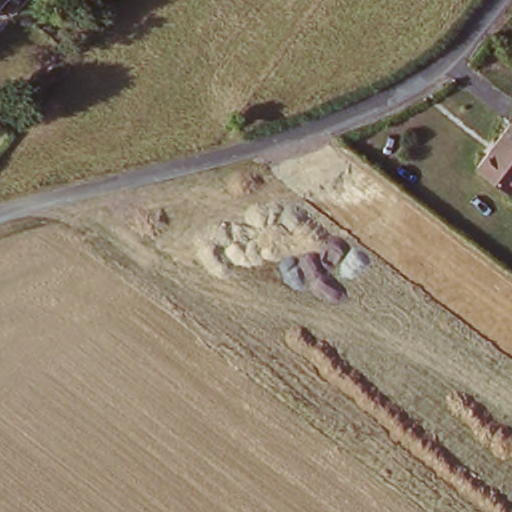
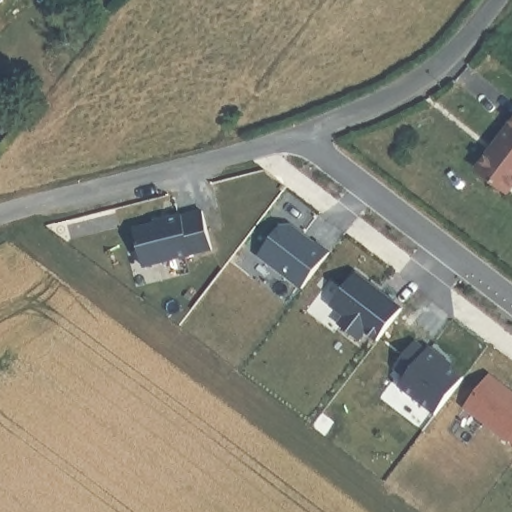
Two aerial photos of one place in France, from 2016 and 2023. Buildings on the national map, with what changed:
unchanged [(2,0),(0,2),(0,0),(2,0)]
demolished [(56,0),(54,3),(51,0),(56,0)]
unchanged [(512,183),(508,190),(479,168),(512,121),(512,183)]
new [(204,204),(215,245),(151,261),(139,223),(204,204)]
new [(287,217),(332,250),(305,282),(263,248),(287,217)]
new [(403,301),(373,336),(367,329),(360,338),(339,323),(347,314),(332,304),(358,267),(403,301)]
new [(465,376),(436,408),(397,379),(403,372),(390,363),(412,335),(465,376)]
new [(508,440),(464,405),(489,372),(512,389),(512,440),(509,438),(508,440)]

